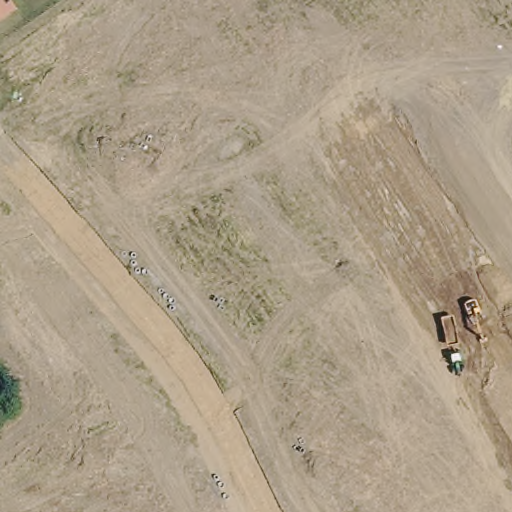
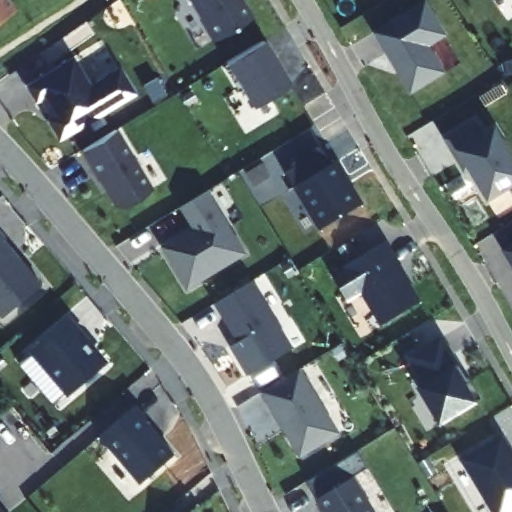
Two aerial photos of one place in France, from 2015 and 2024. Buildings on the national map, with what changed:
unchanged [(0,14),(0,0),(9,0),(13,5),(0,14)]
new [(251,17),(214,40),(190,0),(239,0),(241,1),(251,17)]
new [(373,32),(426,0),(448,36),(429,47),(446,74),(410,95),(373,32)]
new [(225,62),(264,39),(273,54),(271,55),(289,85),(252,107),(225,62)]
new [(118,67),(136,95),(58,142),(45,120),(50,117),(39,101),(35,103),(24,86),(72,57),(88,84),(118,67)]
new [(468,171),(464,174),(444,139),(474,120),(483,133),(494,126),(512,155),(512,187),(488,202),(468,171)]
new [(151,187),(123,206),(113,205),(80,151),(116,129),(151,187)]
new [(285,172),(293,167),(291,163),(319,146),(331,165),(336,162),(361,204),(319,230),(294,187),(285,172)]
new [(244,254),(188,288),(163,247),(194,229),(181,207),(206,192),(244,254)]
new [(0,314),(0,233),(42,285),(3,317),(0,314)]
new [(361,293),(347,302),(332,277),(346,268),(344,267),(384,242),(394,257),(392,257),(419,303),(381,326),(361,293)]
new [(502,251),(512,245),(512,267),(502,251)]
new [(251,282),(292,349),(248,376),(231,347),(238,342),(215,303),(251,282)]
new [(68,397),(29,350),(70,317),(108,362),(68,397)]
new [(442,338),(459,366),(454,369),(462,382),(469,378),(482,399),(440,425),(419,389),(425,385),(409,358),(442,338)]
new [(299,457),(284,431),(285,430),(271,407),(269,407),(261,393),(299,370),(338,433),(299,457)]
new [(173,453),(140,482),(139,480),(100,435),(134,406),(173,453)]
new [(503,437),(512,452),(512,512),(493,512),(462,461),(503,437)]
new [(316,500),(356,476),(376,512),(324,512),(316,500)]
new [(0,503),(6,512),(0,512),(0,503)]

